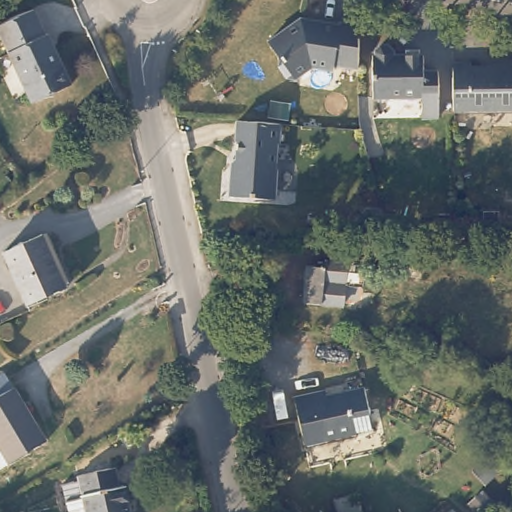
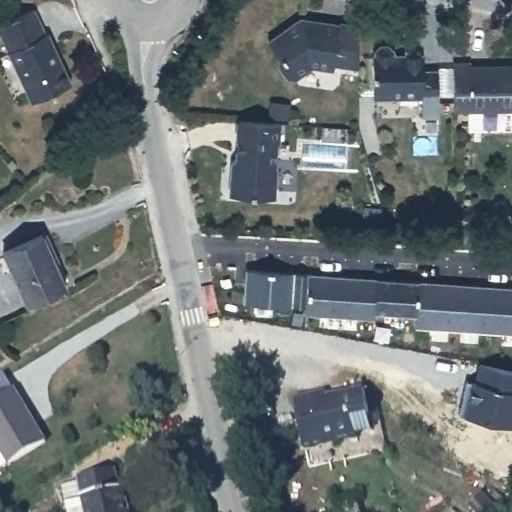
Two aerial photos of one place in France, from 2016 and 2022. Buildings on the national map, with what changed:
unchanged [(62,36),(80,73),(41,91),(5,16),(37,0),(42,0),(53,23),(56,22),(62,36)]
unchanged [(359,66),(335,62),(334,68),(313,63),(295,75),(287,73),(280,61),(281,53),(270,36),(304,14),(311,16),(310,20),(321,23),(322,18),(343,22),(343,20),(360,24),(359,66)]
unchanged [(423,68),(438,68),(438,114),(421,114),(422,95),(373,94),(373,51),(376,51),(376,47),(381,41),(388,42),(394,47),(394,52),(423,52),(423,68)]
unchanged [(476,61),(476,65),(489,65),(492,68),(497,68),(497,65),(512,65),(512,108),(458,108),(459,61),(476,61)]
unchanged [(278,123),(276,142),(274,142),(272,167),(275,167),(273,197),(228,194),(230,160),(235,155),(236,140),(234,140),(235,120),(278,123)]
unchanged [(66,290),(26,306),(4,251),(45,235),(66,290)]
demolished [(328,263),(335,266),(334,300),(307,299),(308,263),(328,263)]
new [(416,328),(416,317),(377,314),(377,318),(306,313),(306,307),(245,302),(247,271),(307,272),(376,277),(416,279),(417,275),(512,281),(512,335),(416,328)]
unchanged [(14,382),(50,431),(1,466),(0,464),(0,372),(3,371),(11,383),(14,382)]
unchanged [(367,428),(304,444),(291,398),(320,390),(324,395),(359,387),(367,428)]
unchanged [(126,485),(130,484),(135,512),(74,512),(68,480),(85,477),(84,472),(121,466),(126,485)]

